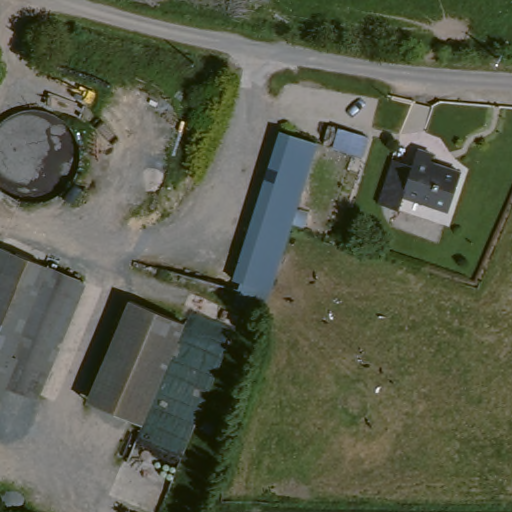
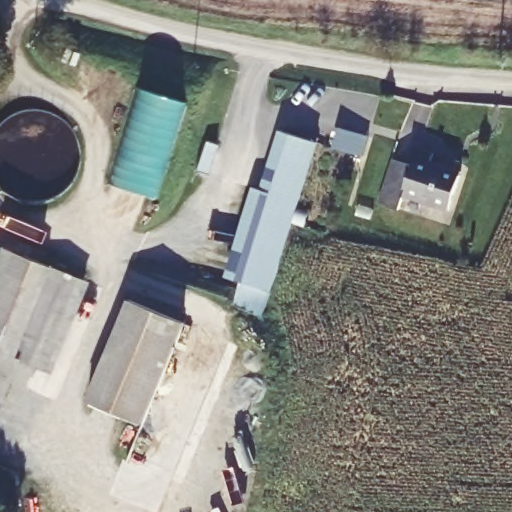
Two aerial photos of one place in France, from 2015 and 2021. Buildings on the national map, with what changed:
new [(186,102),(157,199),(109,184),(138,86),(186,102)]
unchanged [(241,283),(233,280),(284,131),(321,144),(271,293),(263,316),(233,306),(241,283)]
unchanged [(461,169),(451,209),(403,196),(399,211),(379,206),(393,159),(412,165),(417,147),(434,151),(432,160),(461,169)]
unchanged [(0,368),(0,262),(7,246),(45,261),(0,368)]
unchanged [(0,374),(0,368),(45,261),(78,274),(31,388),(0,374)]
unchanged [(84,400),(128,299),(181,323),(136,423),(84,400)]

